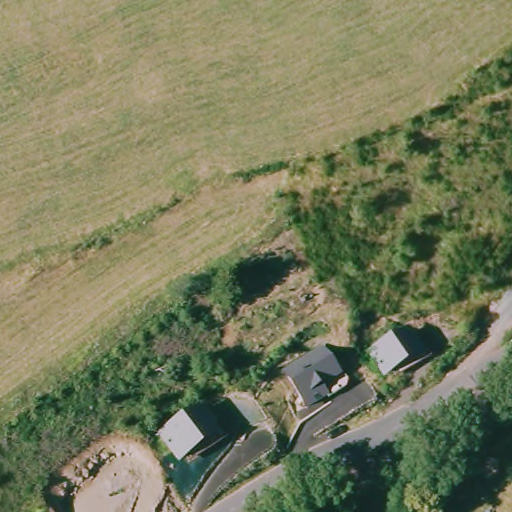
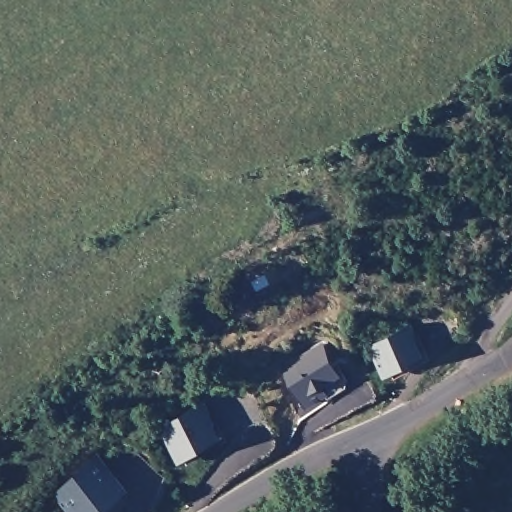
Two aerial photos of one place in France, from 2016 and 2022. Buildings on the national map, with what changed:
unchanged [(412,325),(417,334),(411,338),(419,351),(390,368),(376,345),(412,325)]
unchanged [(282,372),(322,346),(342,378),(327,389),(331,396),(307,408),(282,372)]
unchanged [(205,428),(199,432),(206,445),(175,464),(158,436),(196,413),(205,428)]
new [(53,499),(95,456),(117,477),(130,490),(106,512),(66,512),(53,499)]

